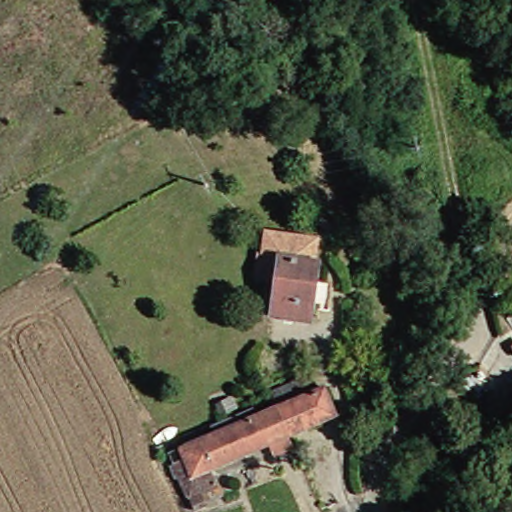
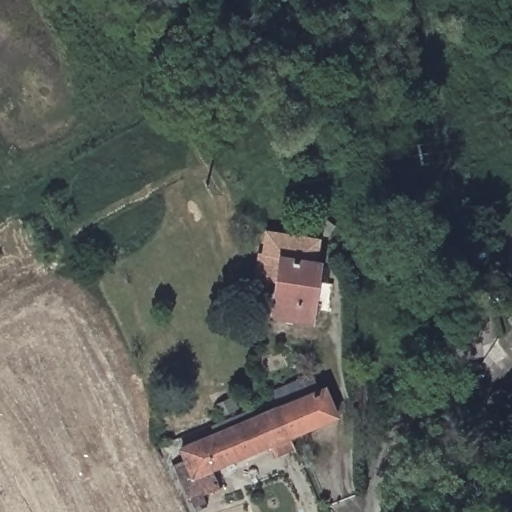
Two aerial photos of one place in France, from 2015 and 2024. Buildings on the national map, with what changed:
unchanged [(280,54),(297,44),(304,54),(286,65),(280,54)]
unchanged [(313,240),(310,262),(315,263),(307,321),(267,316),(272,281),(252,278),(255,254),(259,255),(262,233),(313,240)]
unchanged [(285,435),(272,407),(273,407),(267,391),(307,375),(313,390),(320,387),(332,415),(285,435)]
unchanged [(485,417),(476,398),(497,387),(507,406),(485,417)]
unchanged [(512,387),(512,389),(511,388),(512,387)]
unchanged [(217,404),(230,399),(234,397),(238,409),(234,410),(222,415),(217,404)]
unchanged [(270,456),(264,444),(207,468),(216,490),(210,493),(208,488),(197,493),(202,505),(190,510),(170,463),(181,459),(176,448),(272,407),(285,435),(290,447),(270,456)]

